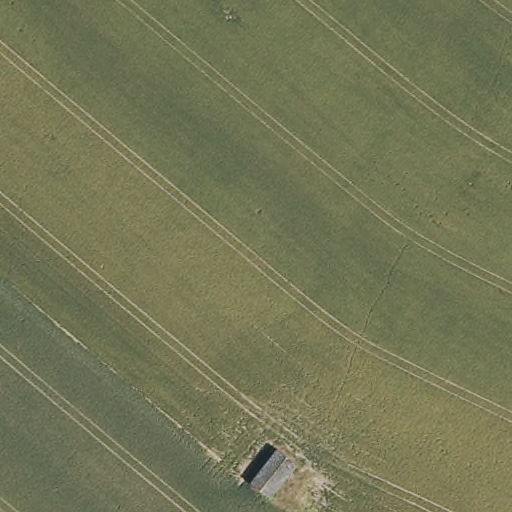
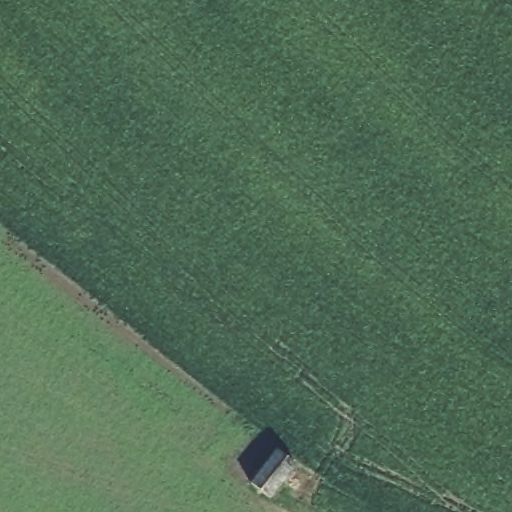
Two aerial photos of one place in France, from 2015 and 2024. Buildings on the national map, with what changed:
unchanged [(302,462),(272,500),(247,479),(276,443),(302,462)]

